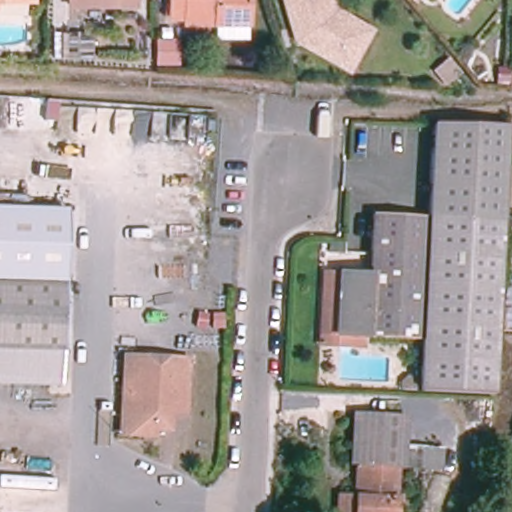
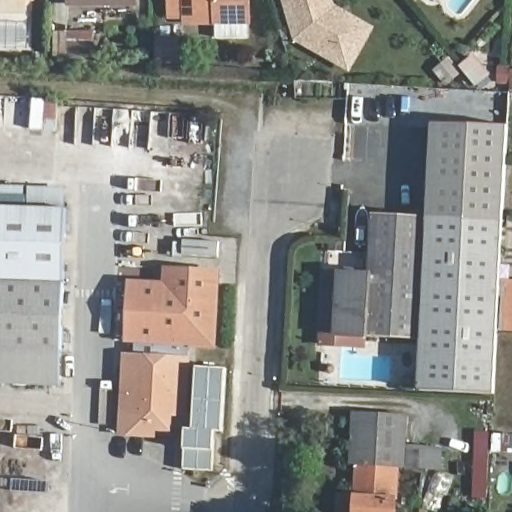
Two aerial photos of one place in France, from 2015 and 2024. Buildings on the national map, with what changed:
unchanged [(137,5),(70,5),(70,0),(137,0),(137,5)]
unchanged [(171,0),(249,0),(249,23),(216,23),(216,17),(186,17),(171,17),(171,0)]
unchanged [(336,4),(374,27),(349,75),(295,42),(283,0),(335,0),(336,4)]
unchanged [(55,57),(55,31),(93,32),(93,57),(55,57)]
unchanged [(157,46),(175,45),(175,72),(157,71),(157,46)]
unchanged [(511,70),(512,71),(512,91),(511,90),(511,70)]
unchanged [(434,120),(510,125),(497,388),(420,387),(420,337),(428,216),(434,120)]
unchanged [(60,349),(0,348),(0,204),(65,206),(60,349)]
unchanged [(420,337),(369,333),(369,340),(360,338),(362,348),(318,346),(321,267),(336,270),(362,270),(367,211),(428,216),(420,337)]
unchanged [(512,219),(512,228),(509,228),(510,219),(512,219)]
new [(126,343),(130,279),(162,281),(163,265),(220,270),(215,349),(126,343)]
unchanged [(512,290),(512,313),(507,313),(508,290),(512,290)]
unchanged [(60,349),(60,386),(0,385),(0,348),(60,349)]
unchanged [(121,352),(133,352),(132,367),(145,368),(146,353),(184,355),(180,410),(164,409),(163,420),(150,420),(149,430),(117,428),(121,352)]
new [(223,432),(215,431),(213,450),(212,471),(182,470),(184,450),(186,429),(194,430),(198,366),(227,368),(223,432)]
unchanged [(349,497),(350,481),(358,481),(359,465),(351,464),(347,464),(349,414),(403,417),(400,467),(393,466),(391,512),(334,512),(335,496),(349,497)]
new [(470,498),(475,432),(512,435),(512,453),(490,451),(486,500),(470,498)]
unchanged [(402,467),(403,447),(438,449),(437,468),(402,467)]

